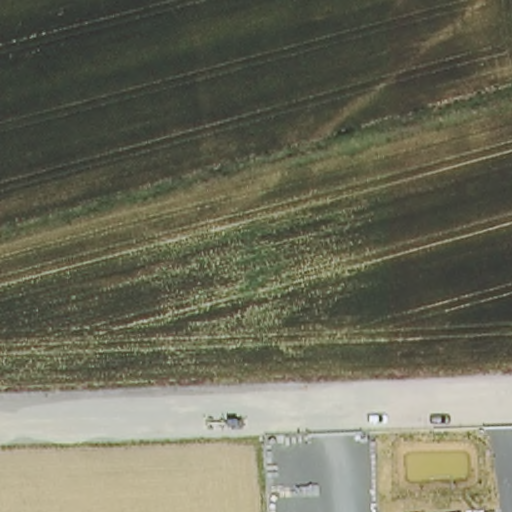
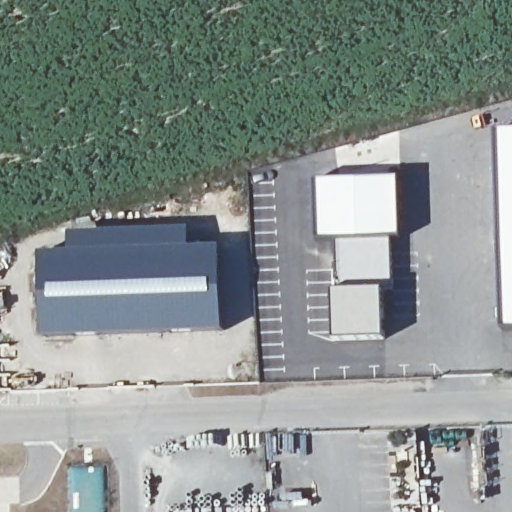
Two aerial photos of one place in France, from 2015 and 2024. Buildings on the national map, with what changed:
new [(512,129),(512,329),(506,329),(499,130),(512,129)]
new [(399,175),(401,237),(392,237),(336,239),(320,240),(317,179),(399,175)]
new [(392,237),(393,283),(384,283),(338,286),(336,239),(392,237)]
new [(225,250),(227,332),(44,340),(42,255),(225,250)]
new [(338,288),(338,286),(384,283),(385,340),(334,341),(333,288),(338,288)]

